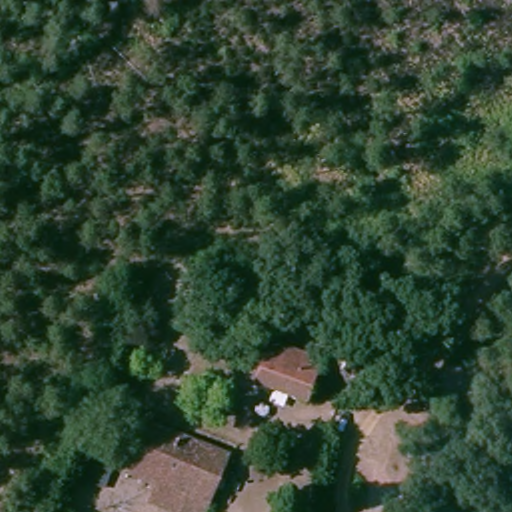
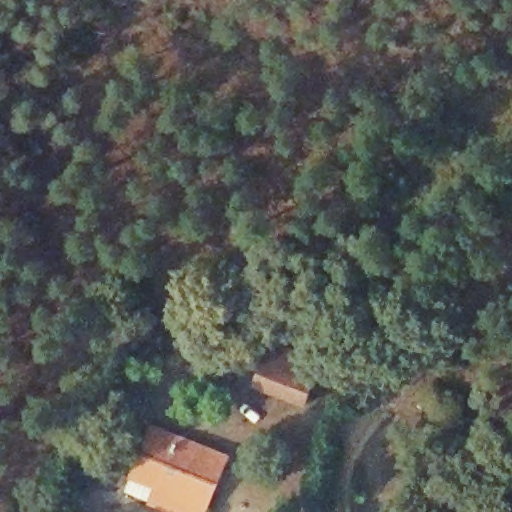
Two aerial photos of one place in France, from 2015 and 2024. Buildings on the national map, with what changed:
unchanged [(254,388),(266,360),(273,344),(322,364),(316,380),(305,410),(254,388)]
unchanged [(222,485),(208,512),(202,512),(125,475),(137,452),(152,459),(168,429),(182,438),(187,425),(197,429),(203,416),(221,424),(212,446),(222,452),(236,459),(222,485)]

